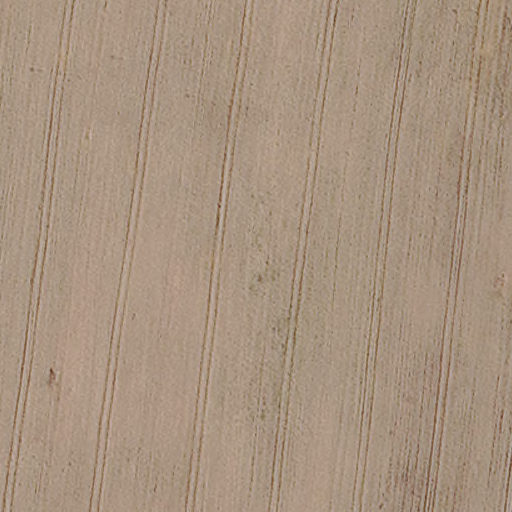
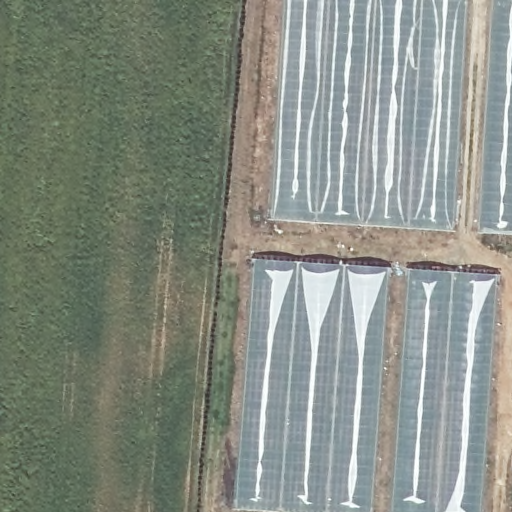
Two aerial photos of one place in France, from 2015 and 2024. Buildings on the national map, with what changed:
new [(253,258),(391,268),(385,321),(384,355),(379,412),(376,471),(373,512),(289,512),(234,508),(253,258)]
new [(400,382),(401,357),(407,268),(498,274),(481,512),(390,512),(400,382)]
new [(376,471),(379,412),(384,355),(401,357),(400,382),(390,512),(373,512),(376,471)]

